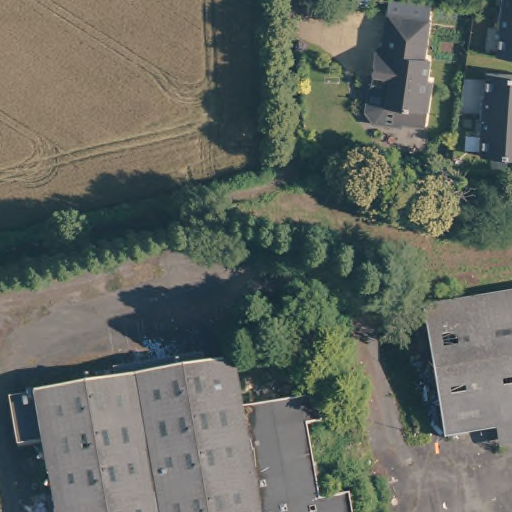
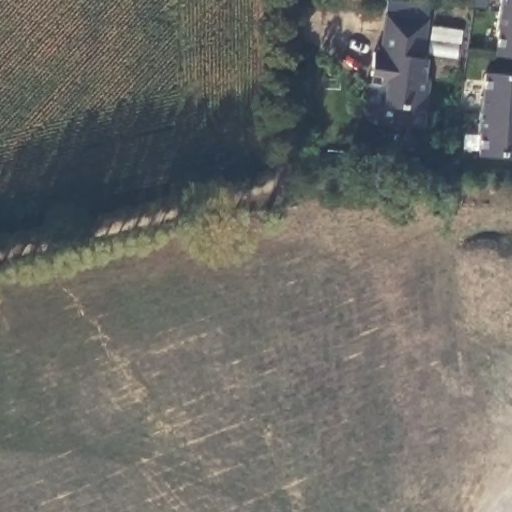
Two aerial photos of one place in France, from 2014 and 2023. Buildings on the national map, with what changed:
unchanged [(500,0),(512,0),(512,13),(498,12),(500,0)]
unchanged [(512,13),(512,59),(495,56),(499,30),(495,30),(498,12),(512,13)]
unchanged [(376,86),(378,77),(367,76),(371,52),(377,53),(380,32),(383,15),(425,21),(422,38),(419,59),(424,60),(421,82),(426,83),(419,127),(397,124),(396,128),(368,123),(360,112),(364,84),(376,86)]
unchanged [(480,97),(482,97),(484,74),(512,75),(512,117),(478,115),(480,97)]
unchanged [(512,117),(512,158),(480,157),(478,156),(480,133),(477,133),(478,115),(512,117)]
demolished [(451,435),(428,304),(512,290),(512,425),(502,427),(451,435)]
demolished [(33,411),(30,393),(232,359),(240,408),(313,396),(318,423),(303,427),(316,498),(345,494),(348,512),(51,512),(38,440),(33,411)]
demolished [(33,411),(38,440),(11,445),(4,397),(30,393),(33,411)]

